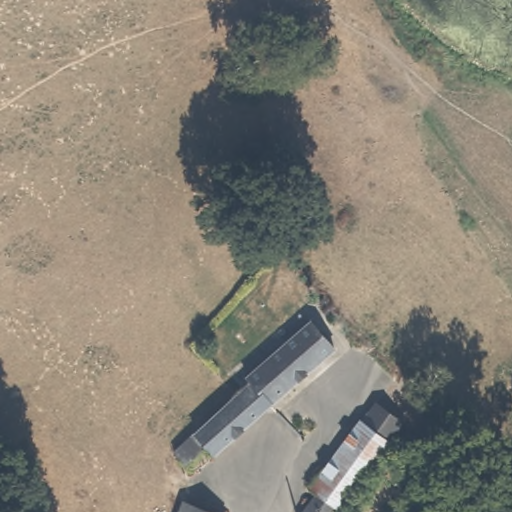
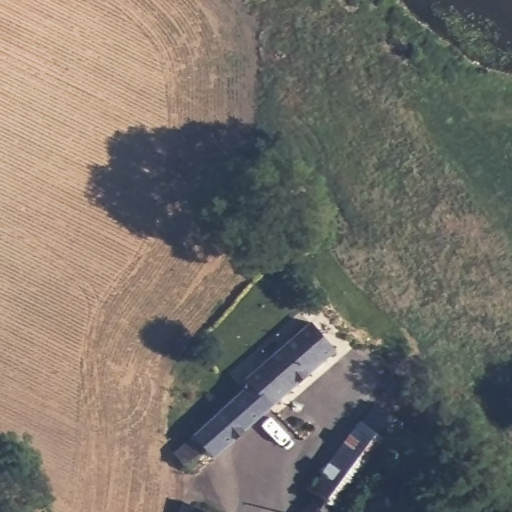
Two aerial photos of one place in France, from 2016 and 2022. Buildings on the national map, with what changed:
unchanged [(212,450),(201,442),(181,460),(172,450),(250,380),(247,376),(306,321),(327,348),(212,450)]
unchanged [(343,509),(335,503),(330,512),(302,512),(317,490),(310,484),(357,416),(387,436),(391,439),(343,509)]
unchanged [(221,512),(187,512),(192,500),(221,512)]

